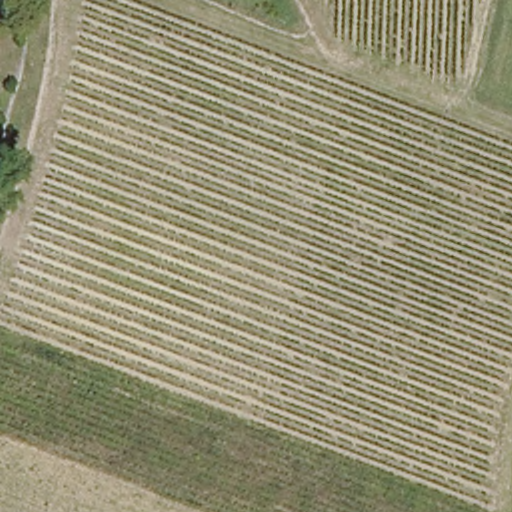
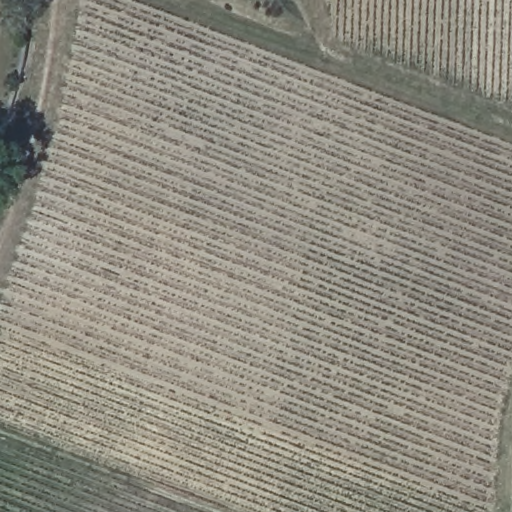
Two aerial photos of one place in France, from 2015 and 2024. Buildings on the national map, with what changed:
[]

